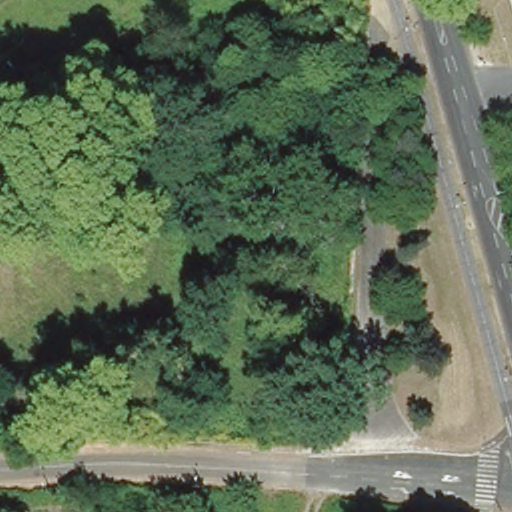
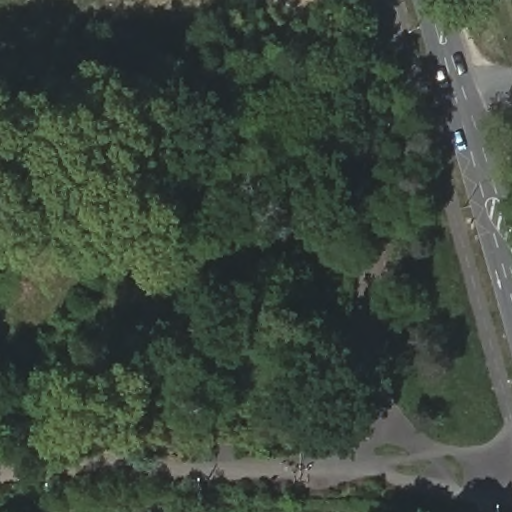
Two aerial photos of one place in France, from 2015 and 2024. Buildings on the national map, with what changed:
[]

